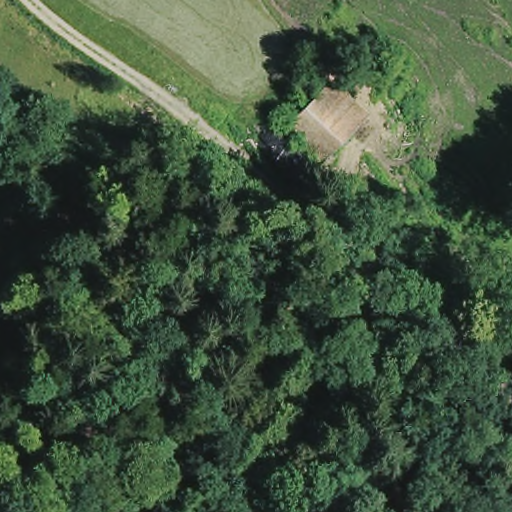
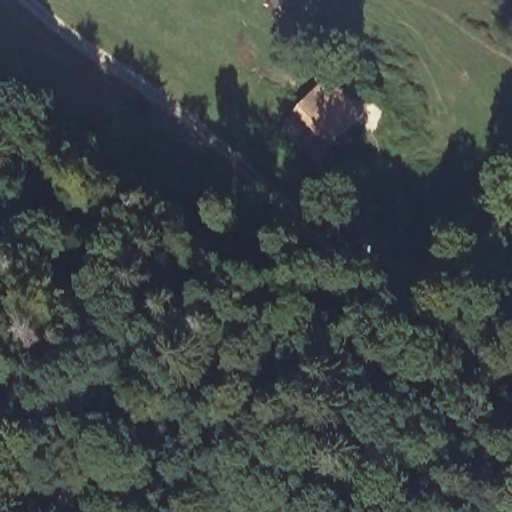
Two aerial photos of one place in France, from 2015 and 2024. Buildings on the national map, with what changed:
unchanged [(328,86),(365,120),(339,147),(303,113),(328,86)]
unchanged [(319,168),(283,134),(303,113),(339,147),(319,168)]

